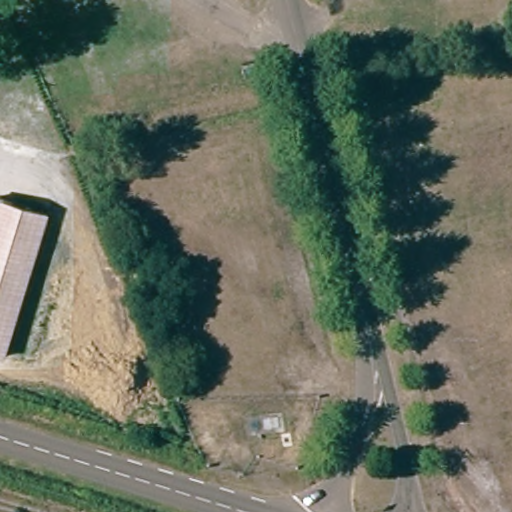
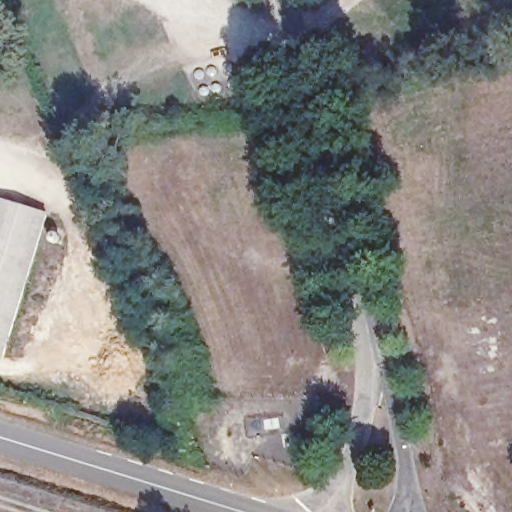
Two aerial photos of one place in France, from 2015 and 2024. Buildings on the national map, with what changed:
unchanged [(1,354),(0,354),(0,197),(45,211),(1,354)]

